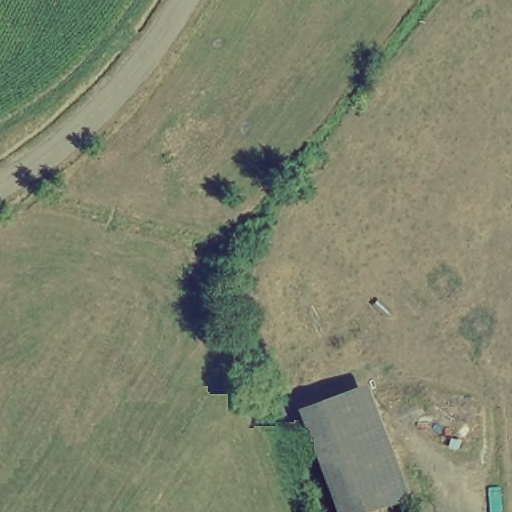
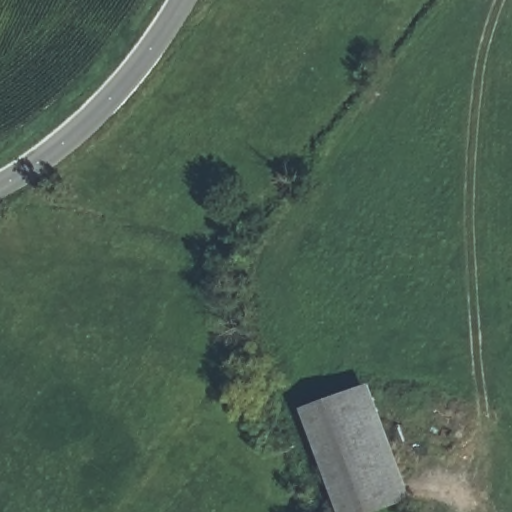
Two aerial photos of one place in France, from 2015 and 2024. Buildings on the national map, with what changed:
unchanged [(337,512),(298,413),(375,384),(419,497),(380,512),(337,512)]

